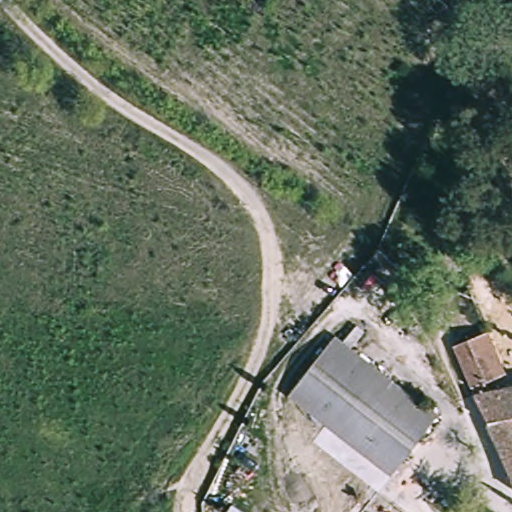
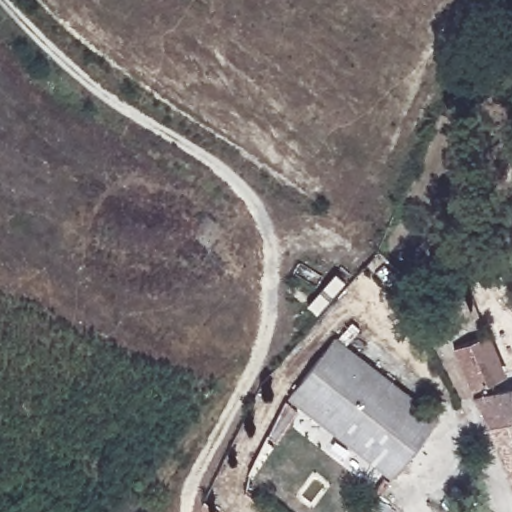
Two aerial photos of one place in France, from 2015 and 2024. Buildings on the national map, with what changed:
unchanged [(489,336),(503,377),(472,391),(455,348),(489,336)]
unchanged [(335,340),(436,417),(395,470),(389,476),(291,397),(295,391),(335,340)]
unchanged [(512,387),(512,477),(502,452),(475,397),(512,387)]

